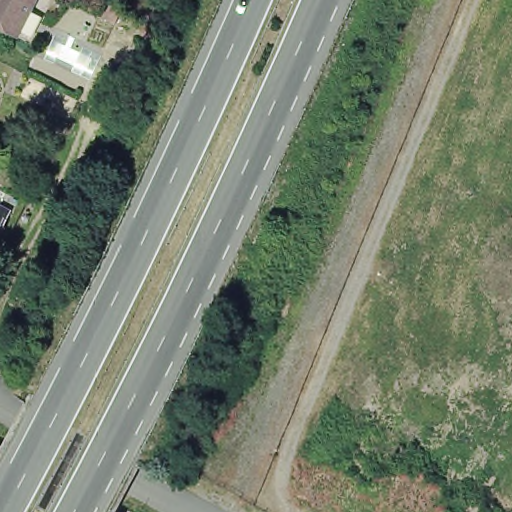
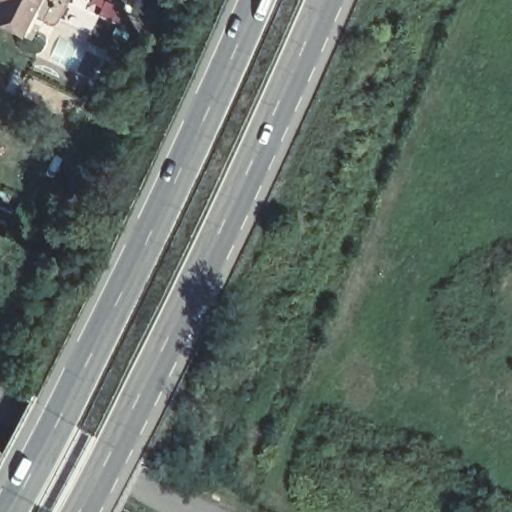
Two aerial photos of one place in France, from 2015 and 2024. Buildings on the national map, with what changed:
unchanged [(21,35),(0,24),(0,0),(38,0),(21,35)]

